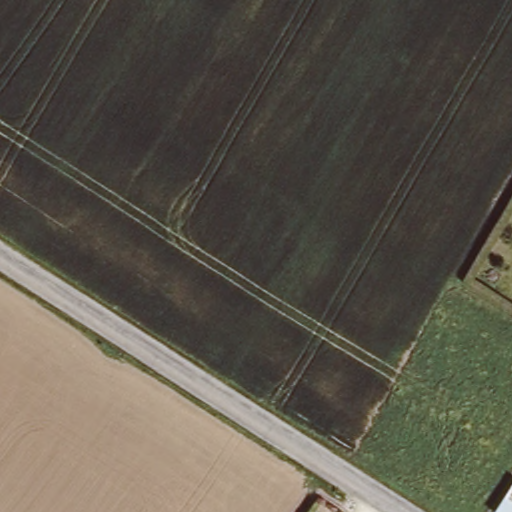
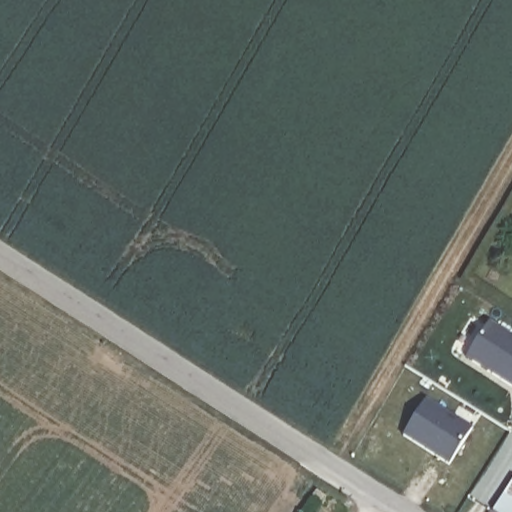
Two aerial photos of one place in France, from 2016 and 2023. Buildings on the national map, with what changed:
new [(487,325),(490,322),(512,337),(512,388),(466,358),(475,345),(458,332),(468,316),(487,325)]
new [(426,401),(471,428),(449,465),(403,435),(426,401)]
unchanged [(512,480),(512,512),(497,512),(493,510),(512,480)]

